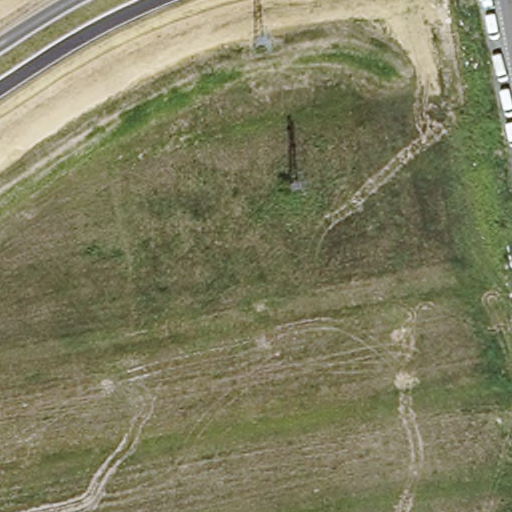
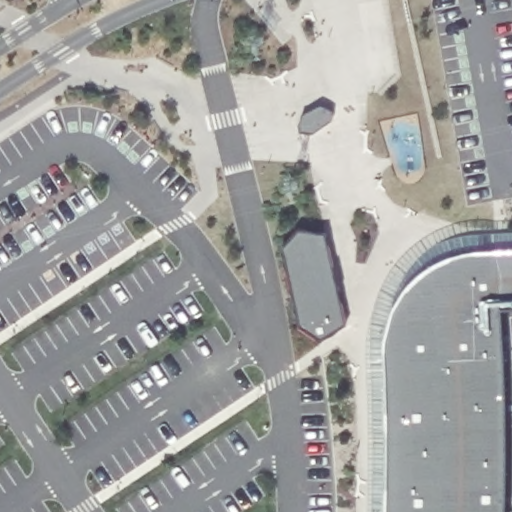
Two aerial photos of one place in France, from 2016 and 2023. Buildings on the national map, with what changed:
new [(298,115),(316,105),(330,111),(328,121),(310,134),(296,133),(295,125),(298,115)]
new [(295,229),(321,232),(342,324),(317,340),(295,327),(277,248),(295,229)]
new [(495,311),(498,362),(500,426),(500,486),(499,512),(379,512),(380,487),(380,433),(377,354),(379,330),(386,308),(397,290),(419,268),(440,257),(458,252),(467,251),(512,250),(512,310),(495,311)]

